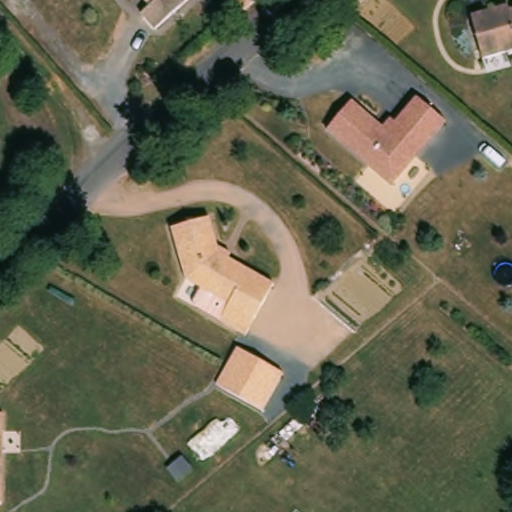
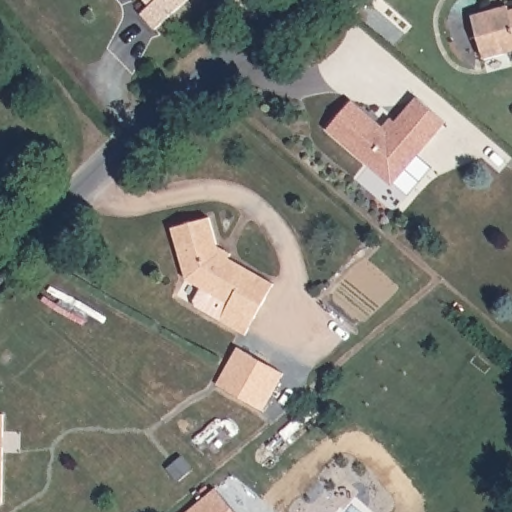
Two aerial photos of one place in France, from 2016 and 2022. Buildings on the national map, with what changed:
unchanged [(188,3),(153,33),(139,17),(148,9),(140,0),(186,0),(188,3)]
unchanged [(506,17),(512,14),(512,52),(481,64),(461,23),(501,11),(506,17)]
unchanged [(443,122),(388,183),(328,132),(351,103),(385,131),(412,100),(443,122)]
unchanged [(196,286),(177,279),(152,240),(188,217),(212,253),(267,272),(253,309),(222,297),(196,286)]
unchanged [(190,300),(196,286),(222,297),(253,309),(246,327),(218,316),(192,306),(190,300)]
unchanged [(263,411),(214,384),(235,348),(284,374),(263,411)]
unchanged [(1,413),(4,501),(0,506),(0,414),(1,413)]
new [(187,512),(215,488),(236,512),(187,512)]

